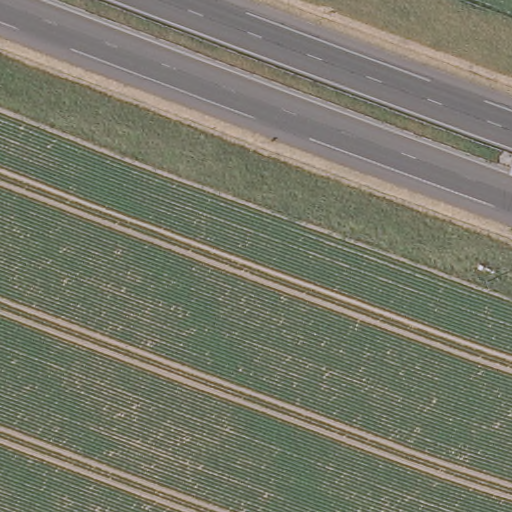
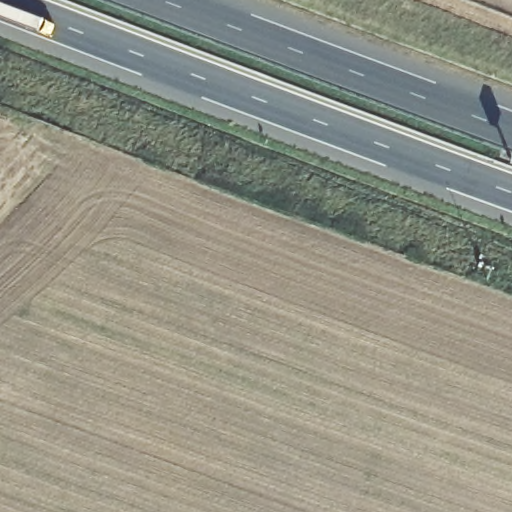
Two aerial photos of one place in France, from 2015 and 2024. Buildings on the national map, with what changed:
[]

